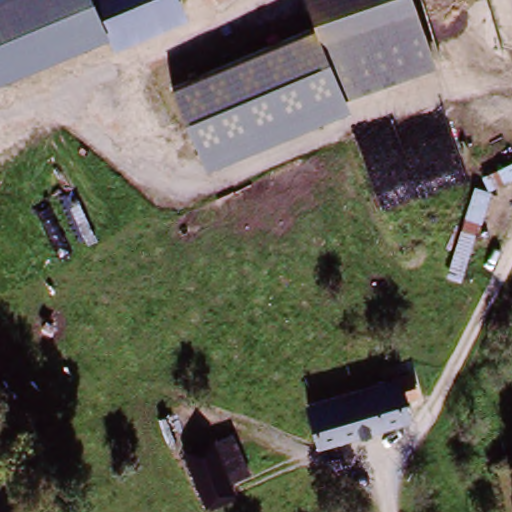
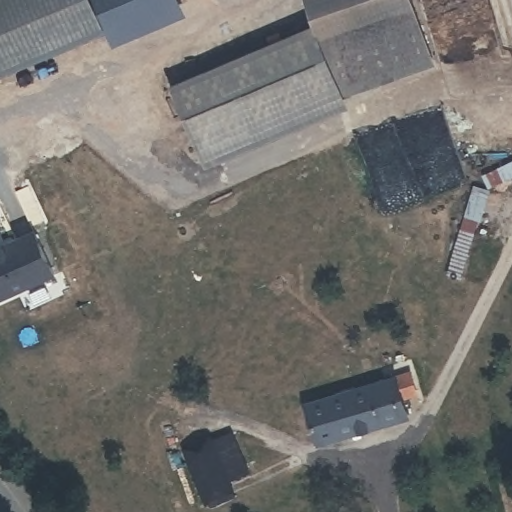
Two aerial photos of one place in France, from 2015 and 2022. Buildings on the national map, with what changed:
unchanged [(0,72),(0,0),(92,0),(104,28),(0,72)]
unchanged [(104,28),(92,0),(172,0),(104,28)]
unchanged [(113,46),(104,28),(172,0),(177,0),(186,16),(113,46)]
unchanged [(306,0),(411,0),(431,62),(337,93),(306,0)]
unchanged [(206,169),(170,87),(315,25),(337,93),(342,92),(348,109),(206,169)]
new [(57,278),(0,302),(0,246),(35,230),(57,278)]
unchanged [(413,369),(421,393),(395,402),(400,421),(320,444),(305,399),(413,369)]
unchanged [(193,443),(215,432),(241,485),(219,497),(193,443)]

